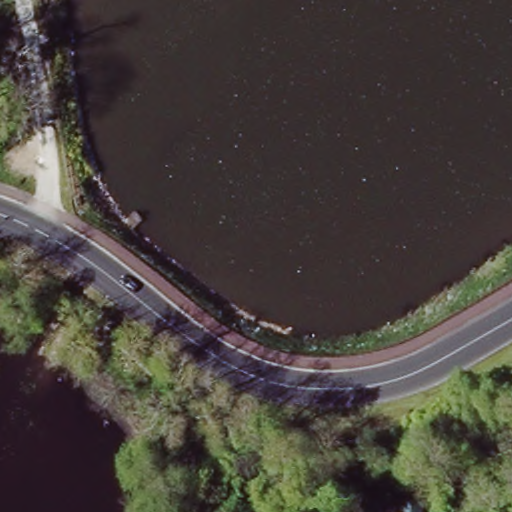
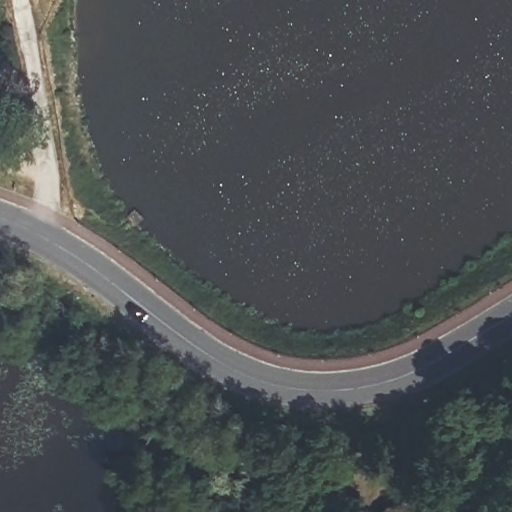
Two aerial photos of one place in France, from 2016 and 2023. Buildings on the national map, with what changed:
unchanged [(422,401),(426,451),(381,456),(377,406),(422,401)]
unchanged [(348,444),(312,450),(312,438),(347,428),(348,444)]
unchanged [(400,492),(419,494),(419,483),(447,488),(443,512),(398,512),(400,492)]
unchanged [(335,512),(313,512),(312,505),(335,507),(335,512)]

